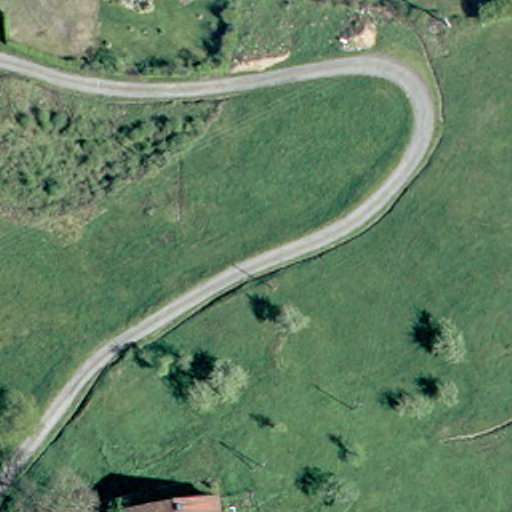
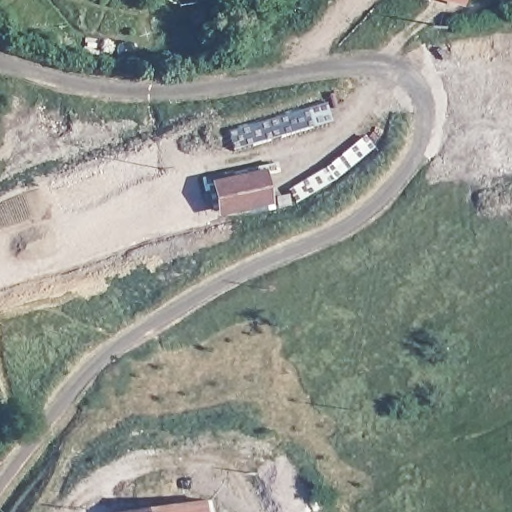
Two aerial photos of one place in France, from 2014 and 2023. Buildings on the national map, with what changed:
new [(446,0),(444,0),(465,0),(463,5),(446,0)]
new [(264,169),(270,203),(215,214),(208,180),(264,169)]
unchanged [(210,500),(213,512),(146,512),(210,500)]

